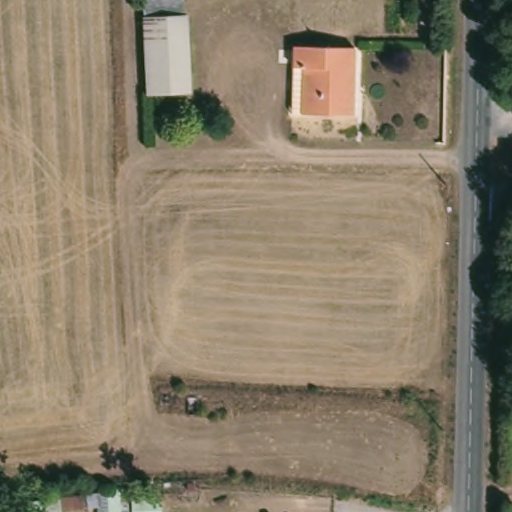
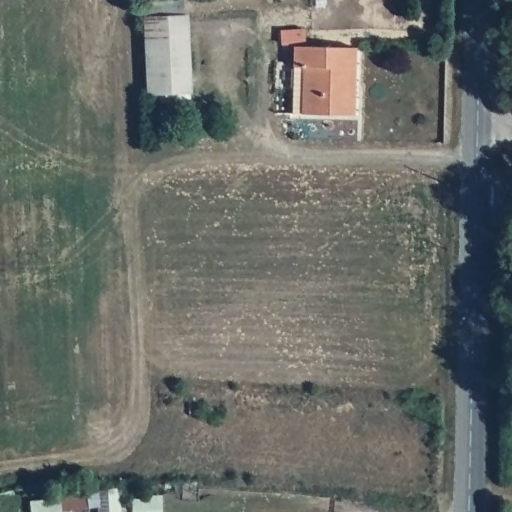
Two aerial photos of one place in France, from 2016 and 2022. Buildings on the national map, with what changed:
unchanged [(183,1),(183,17),(189,17),(193,98),(146,100),(142,2),(183,1)]
unchanged [(293,117),(290,50),(351,49),(353,116),(293,117)]
unchanged [(96,492),(128,491),(128,498),(159,498),(161,512),(97,512),(96,492)]

